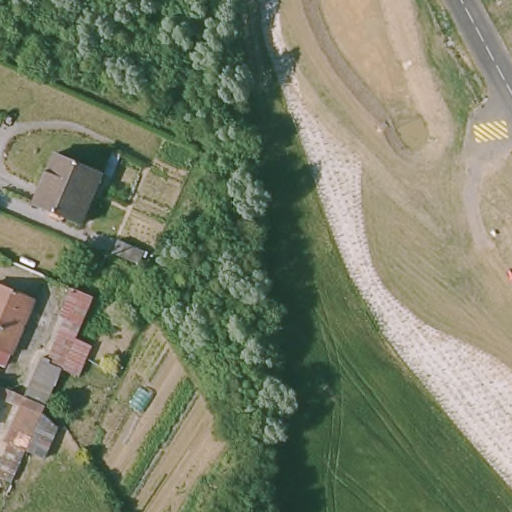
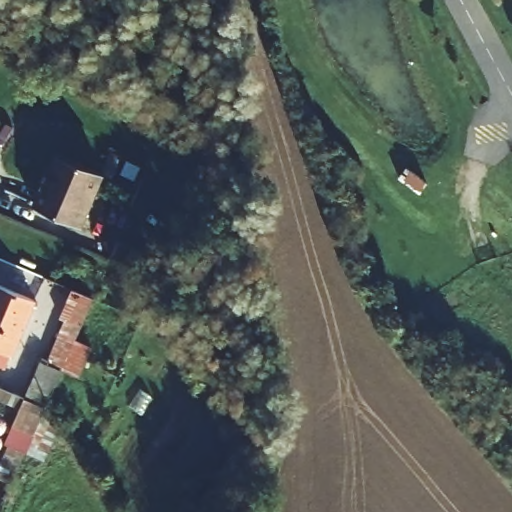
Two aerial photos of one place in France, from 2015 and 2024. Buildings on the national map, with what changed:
unchanged [(52,150),(98,169),(75,220),(29,201),(52,150)]
unchanged [(8,351),(0,347),(0,281),(33,296),(8,351)]
unchanged [(92,293),(86,304),(66,295),(71,284),(92,293)]
unchanged [(65,354),(59,351),(68,331),(74,333),(65,354)]
unchanged [(17,444),(3,438),(18,404),(0,396),(0,384),(23,394),(31,375),(51,384),(43,403),(9,479),(3,476),(0,475),(0,459),(8,462),(17,444)]

